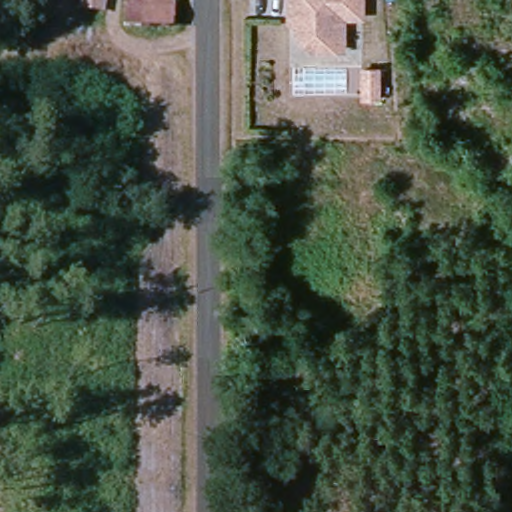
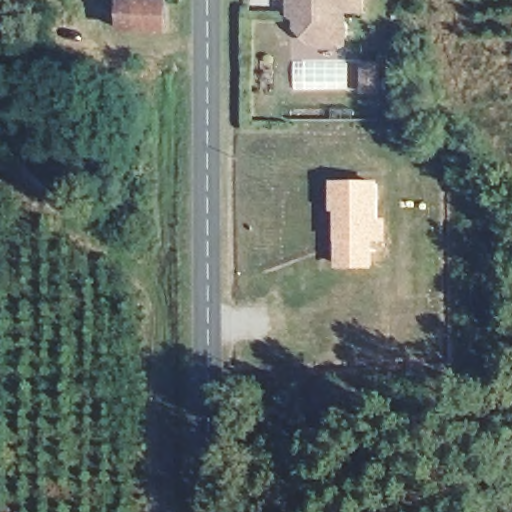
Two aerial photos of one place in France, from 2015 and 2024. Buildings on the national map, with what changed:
unchanged [(168,4),(166,27),(120,24),(122,0),(168,4)]
unchanged [(294,0),(366,0),(366,11),(348,10),(348,44),(317,43),(301,28),(301,13),(294,13),(294,5),(294,0)]
unchanged [(386,74),(386,102),(372,102),(372,73),(386,74)]
new [(376,185),(376,223),(381,223),(381,238),(366,239),(367,264),(338,265),(338,224),(344,218),(344,209),(333,209),(334,184),(376,185)]

